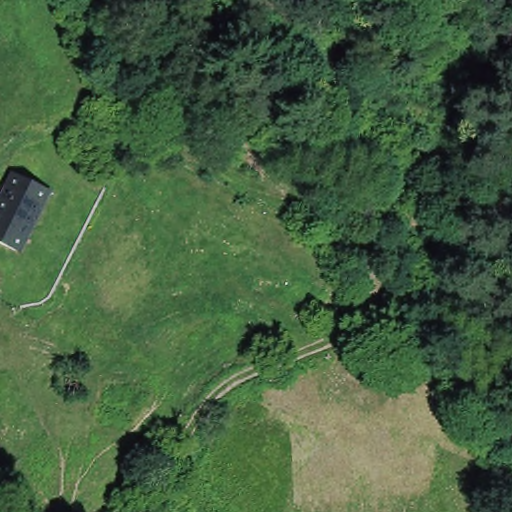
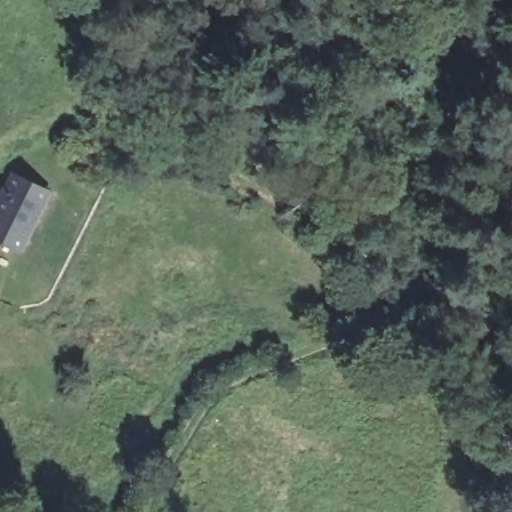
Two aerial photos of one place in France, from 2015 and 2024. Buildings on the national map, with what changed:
unchanged [(0,209),(0,207),(18,172),(53,190),(35,225),(30,235),(23,250),(0,239),(0,209)]

